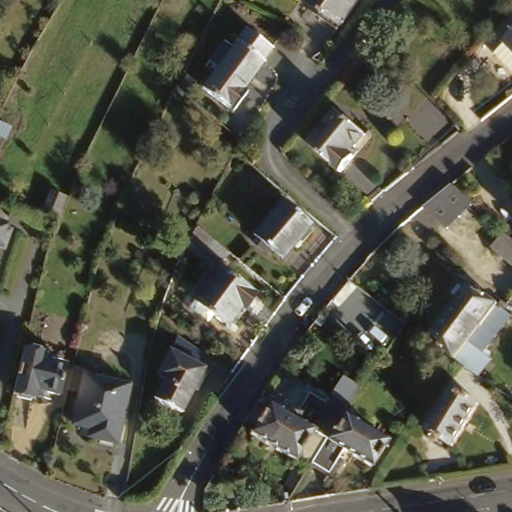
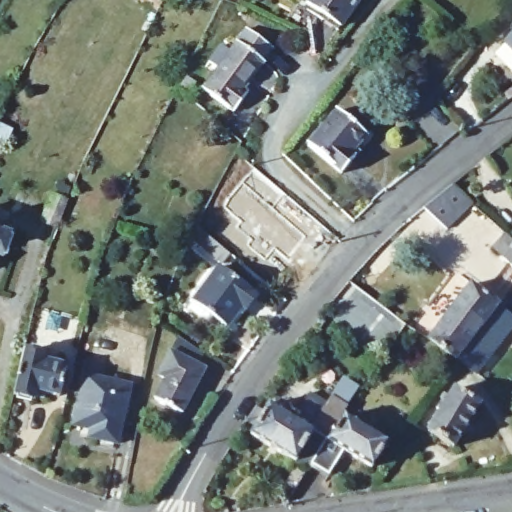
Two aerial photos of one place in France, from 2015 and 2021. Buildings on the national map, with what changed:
unchanged [(366,0),(347,26),(313,3),(315,0),(366,0)]
unchanged [(253,24),(279,46),(248,89),(253,93),(240,110),(209,85),(253,24)]
unchanged [(512,34),(512,38),(510,36),(512,34)]
unchanged [(342,108),(374,133),(348,169),(315,145),(342,108)]
unchanged [(18,125),(12,136),(0,129),(0,123),(3,116),(18,125)]
unchanged [(439,219),(426,205),(453,183),(466,198),(439,219)]
unchanged [(291,201),(317,223),(290,257),(263,234),(291,201)]
unchanged [(17,224),(9,246),(0,242),(0,243),(0,217),(17,224)]
unchanged [(512,234),(512,257),(498,246),(509,232),(512,234)]
unchanged [(219,252),(225,256),(217,268),(186,244),(188,240),(192,233),(219,252)]
unchanged [(261,298),(251,311),(245,306),(230,326),(199,301),(225,268),(261,298)]
unchanged [(454,353),(427,332),(469,276),(497,297),(454,353)]
unchanged [(497,297),(503,301),(510,307),(468,362),(455,354),(454,353),(497,297)]
unchanged [(34,344),(55,350),(54,356),(76,361),(68,391),(46,385),(43,395),(23,389),(34,344)]
unchanged [(174,380),(166,375),(180,352),(203,366),(212,372),(202,390),(187,415),(163,401),(174,380)]
unchanged [(135,381),(121,440),(96,433),(99,424),(79,419),(92,369),(135,381)]
unchanged [(457,387),(483,403),(456,445),(431,429),(457,387)]
unchanged [(309,425),(330,391),(351,405),(349,408),(331,439),(309,425)]
unchanged [(255,433),(273,403),(279,406),(282,400),(301,411),(297,418),(309,425),(331,439),(316,462),(312,468),(255,433)]
unchanged [(349,414),(366,425),(370,418),(380,424),(375,431),(392,442),(376,466),(351,451),(336,475),(316,462),(331,439),(333,440),(349,414)]

